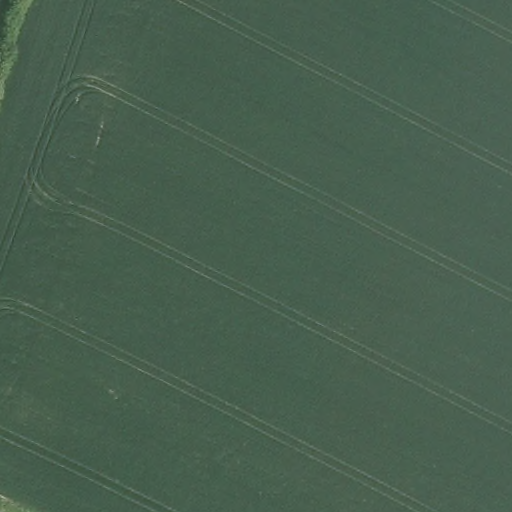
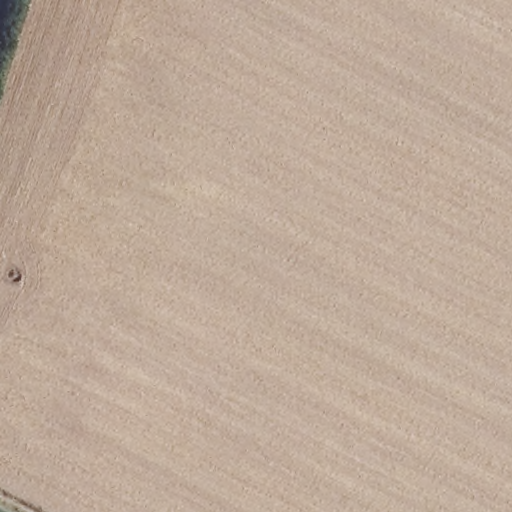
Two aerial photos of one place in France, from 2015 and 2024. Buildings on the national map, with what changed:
[]

